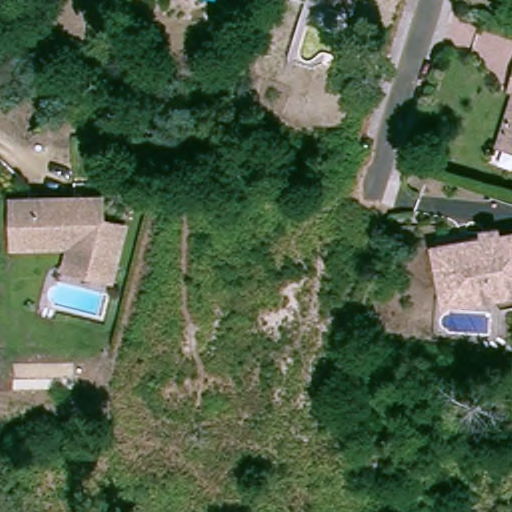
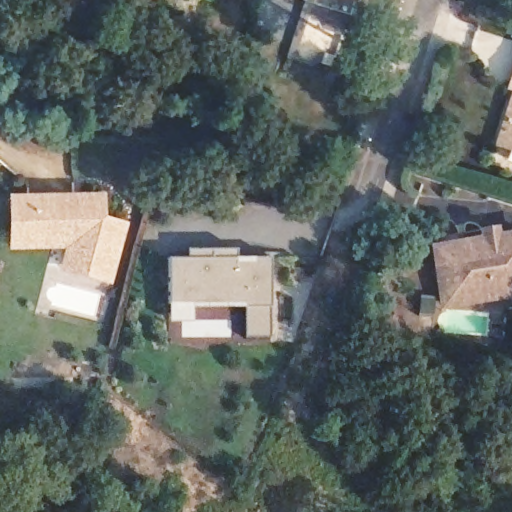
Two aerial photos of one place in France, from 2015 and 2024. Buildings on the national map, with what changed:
unchanged [(348,7),(327,0),(351,0),(348,7)]
unchanged [(489,151),(493,137),(507,96),(501,94),(508,70),(512,60),(512,158),(489,151)]
unchanged [(100,282),(81,277),(66,274),(70,261),(73,248),(75,239),(64,233),(21,234),(20,204),(104,202),(105,222),(107,225),(126,230),(115,276),(112,285),(100,282)]
unchanged [(6,249),(5,204),(20,204),(21,234),(64,233),(75,239),(73,248),(6,249)]
unchanged [(445,302),(437,259),(483,250),(481,238),(495,235),(496,248),(512,245),(512,297),(486,302),(446,309),(445,302)]
new [(187,259),(187,250),(236,250),(236,258),(270,258),(270,338),(245,338),(245,308),(192,308),(192,322),(169,322),(169,260),(187,259)]

